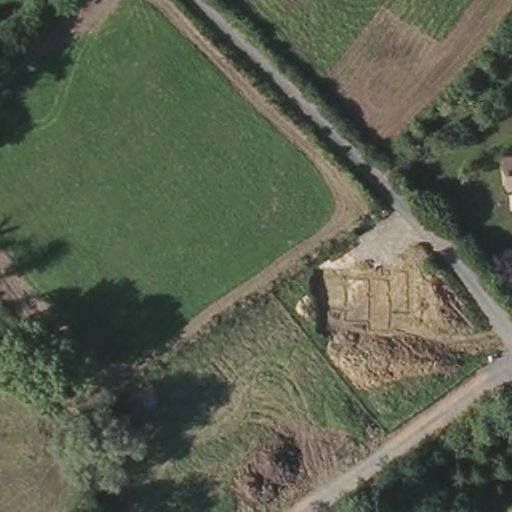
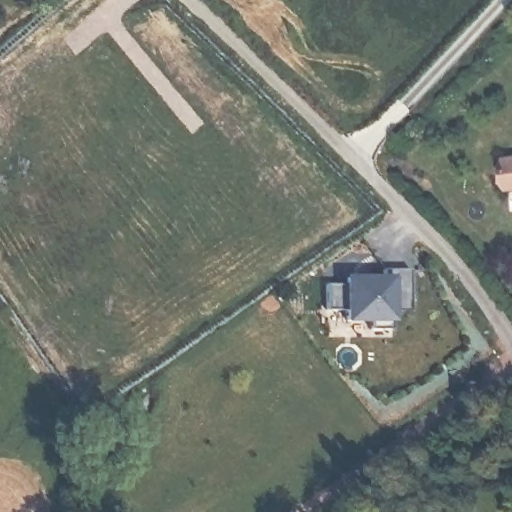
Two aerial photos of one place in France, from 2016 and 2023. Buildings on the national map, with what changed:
unchanged [(509,192),(503,154),(512,152),(512,191),(509,192)]
new [(400,308),(383,308),(381,325),(361,325),(361,314),(337,313),(338,302),(320,301),(321,277),(341,278),(341,271),(380,274),(380,266),(405,268),(400,308)]

